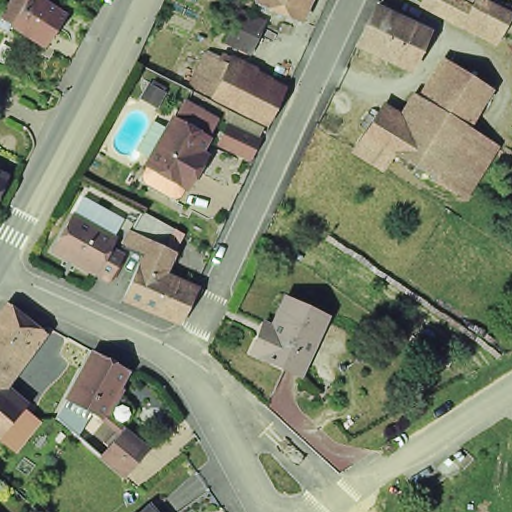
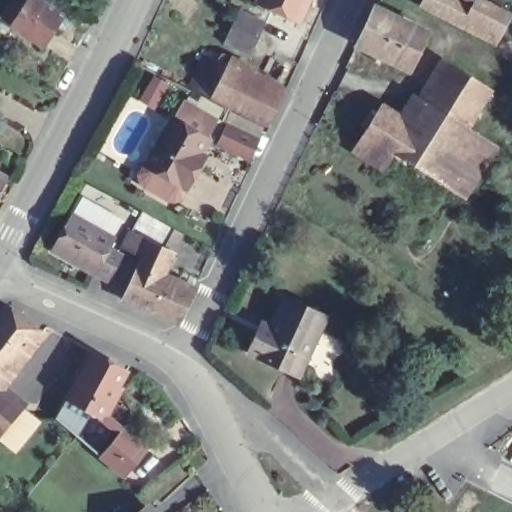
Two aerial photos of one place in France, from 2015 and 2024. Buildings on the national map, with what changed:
unchanged [(30,0),(63,22),(42,52),(0,24),(0,22),(15,0),(30,0)]
unchanged [(251,3),(252,0),(303,0),(293,21),(251,3)]
unchanged [(504,34),(470,17),(463,14),(460,20),(425,2),(426,0),(468,0),(476,4),(478,0),(487,0),(512,13),(512,18),(504,34)]
unchanged [(370,59),(373,51),(355,42),(372,7),(427,34),(410,70),(382,56),(378,62),(370,59)]
unchanged [(267,24),(248,60),(290,85),(267,132),(185,90),(205,47),(218,55),(235,11),(267,24)]
unchanged [(452,64),(492,90),(468,127),(467,127),(427,102),(452,64)]
unchanged [(148,83),(163,92),(157,102),(142,94),(148,83)]
unchanged [(144,159),(172,115),(182,97),(215,118),(204,135),(195,147),(202,151),(193,165),(182,182),(174,197),(135,174),(144,159)]
unchanged [(435,177),(396,152),(387,167),(357,148),(380,111),(390,117),(410,130),(427,102),(467,127),(435,177)]
unchanged [(216,147),(227,127),(231,120),(260,136),(255,143),(245,163),(216,147)]
unchanged [(468,127),(498,146),(465,197),(435,177),(467,127),(468,127)]
unchanged [(0,201),(0,177),(10,182),(0,201)]
unchanged [(116,303),(131,271),(133,267),(135,262),(117,252),(125,238),(135,217),(168,234),(157,253),(165,257),(154,282),(185,296),(172,327),(147,317),(116,303)]
unchanged [(89,277),(87,279),(46,255),(68,219),(109,242),(104,251),(112,255),(117,258),(102,285),(89,277)]
unchanged [(322,323),(292,380),(243,354),(252,336),(258,326),(268,331),(283,302),(322,323)]
unchanged [(21,447),(7,436),(0,430),(0,325),(15,305),(50,332),(33,353),(40,360),(32,367),(27,362),(15,377),(5,388),(29,408),(39,416),(28,430),(32,432),(21,447)]
unchanged [(135,374),(113,416),(152,446),(125,484),(51,421),(61,401),(47,394),(75,337),(135,374)]
unchanged [(143,508),(146,512),(138,512),(143,508)]

